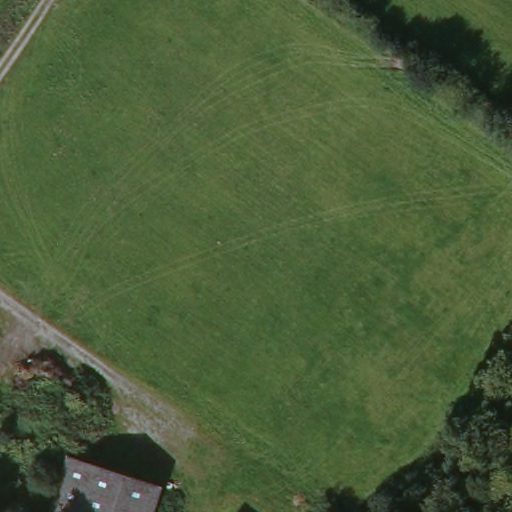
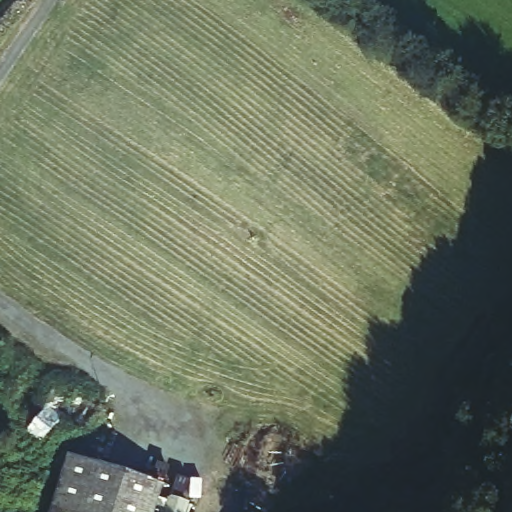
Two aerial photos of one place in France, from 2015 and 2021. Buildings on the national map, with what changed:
unchanged [(154,483),(146,512),(46,512),(61,458),(154,483)]

